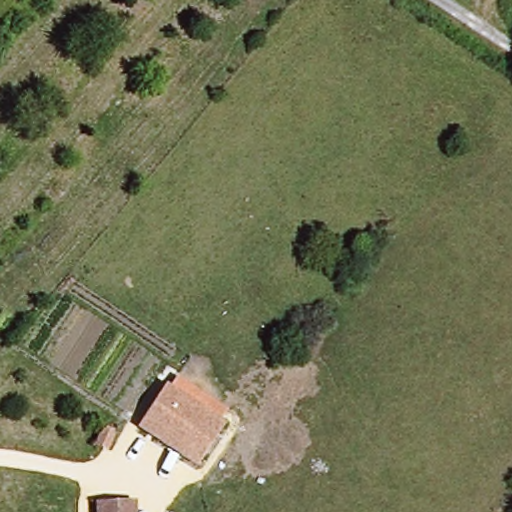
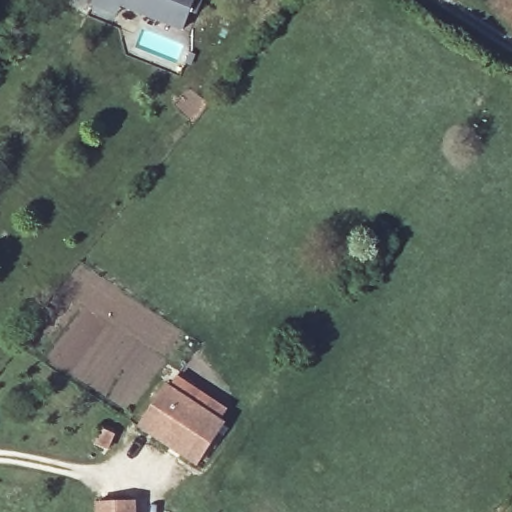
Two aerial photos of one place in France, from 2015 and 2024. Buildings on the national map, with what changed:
new [(184,31),(132,12),(129,20),(90,5),(93,0),(197,0),(184,31)]
unchanged [(185,387),(189,380),(244,412),(241,420),(208,475),(155,438),(185,387)]
unchanged [(146,497),(147,512),(106,512),(106,498),(146,497)]

